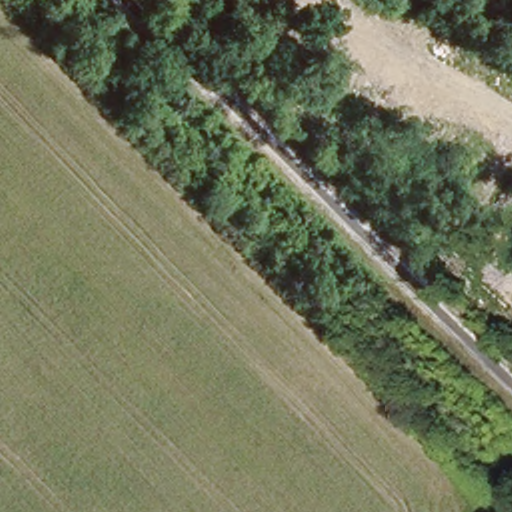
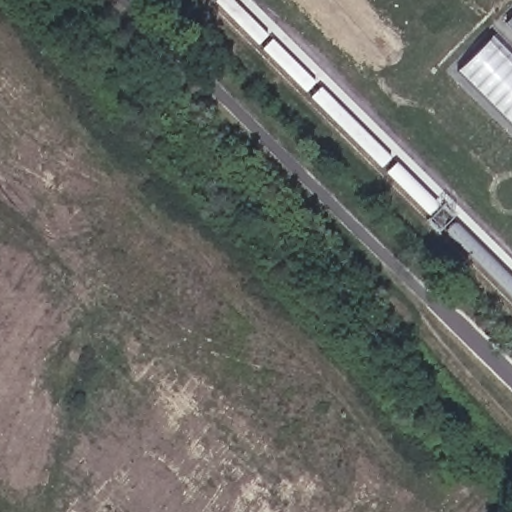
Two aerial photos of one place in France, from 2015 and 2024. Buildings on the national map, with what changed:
new [(512,27),(506,21),(512,16),(512,27)]
new [(512,56),(512,126),(456,71),(492,36),(512,56)]

